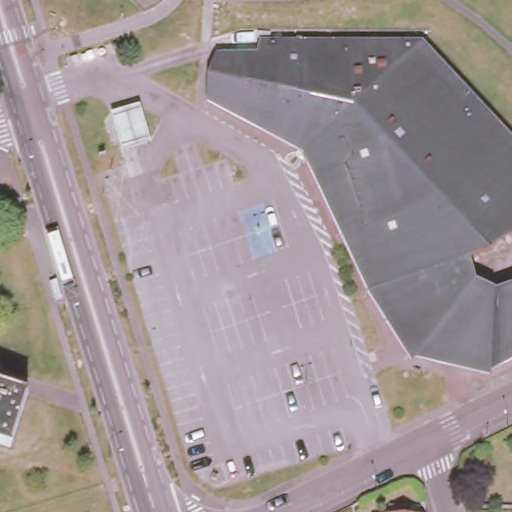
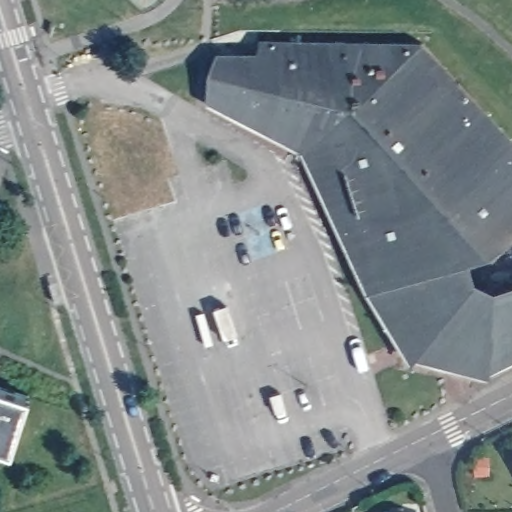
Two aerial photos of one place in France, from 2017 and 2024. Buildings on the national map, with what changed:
unchanged [(509,234),(491,251),(457,261),(462,282),(485,295),(512,288),(512,348),(485,362),(417,345),(377,280),(331,126),(209,91),(209,74),(215,48),(260,49),(264,36),(425,40),(512,137),(512,237),(509,234)]
unchanged [(489,373),(407,355),(367,293),(300,148),(209,101),(209,91),(331,126),(377,280),(417,345),(485,362),(512,348),(512,361),(489,373)]
unchanged [(0,441),(0,383),(32,393),(15,446),(0,441)]

